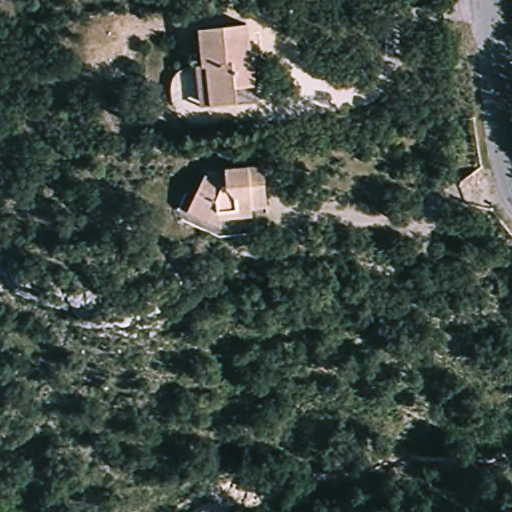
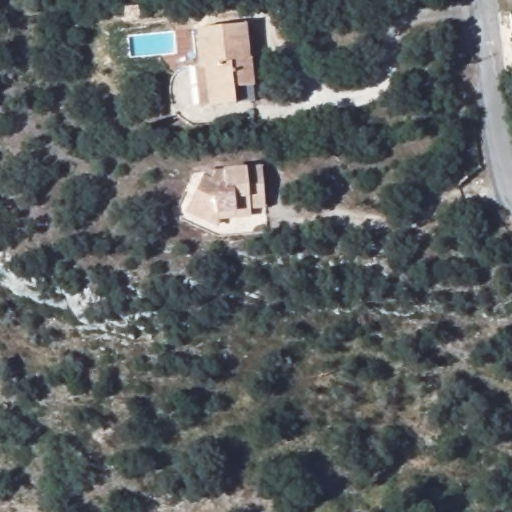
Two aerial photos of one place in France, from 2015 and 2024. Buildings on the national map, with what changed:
unchanged [(223,105),(197,108),(183,110),(180,67),(184,66),(181,29),(231,24),(238,90),(239,102),(223,105)]
unchanged [(183,214),(189,200),(197,180),(208,179),(207,167),(257,163),(262,198),(243,200),(243,212),(209,214),(209,222),(183,214)]

